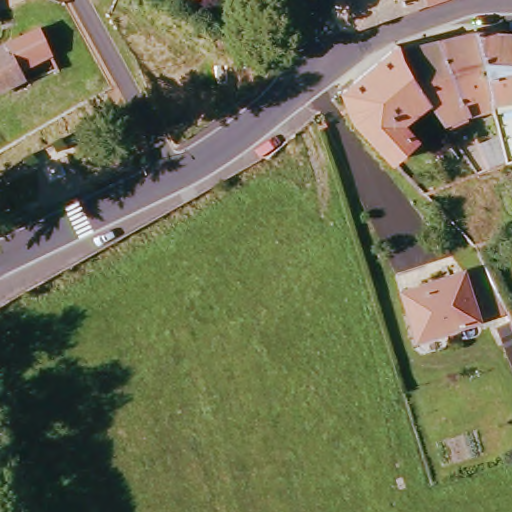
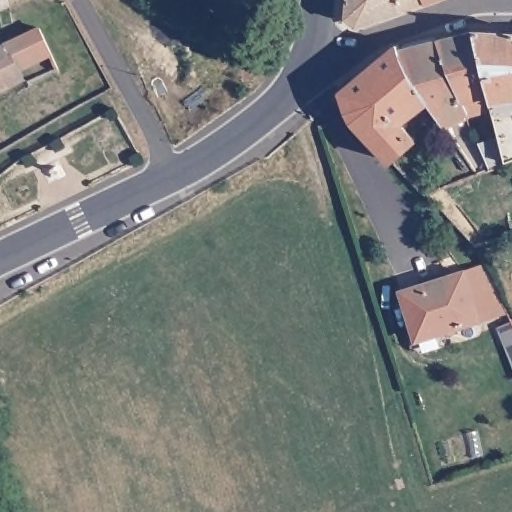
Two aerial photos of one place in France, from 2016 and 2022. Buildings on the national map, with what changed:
unchanged [(355,25),(345,20),(347,0),(424,0),(355,25)]
unchanged [(36,26),(47,54),(12,70),(16,80),(0,87),(0,45),(7,41),(36,26)]
unchanged [(474,30),(489,101),(490,114),(463,115),(438,39),(474,30)]
unchanged [(512,33),(512,98),(489,101),(474,30),(512,33)]
unchanged [(438,39),(463,115),(442,124),(428,100),(399,49),(438,39)]
unchanged [(425,131),(413,141),(388,162),(348,121),(337,94),(396,45),(399,49),(428,100),(400,123),(404,130),(417,120),(425,131)]
unchanged [(479,161),(475,147),(496,141),(490,114),(489,101),(512,98),(512,162),(500,165),(484,171),(472,175),(467,165),(479,161)]
unchanged [(388,297),(472,273),(492,316),(402,345),(388,297)]

